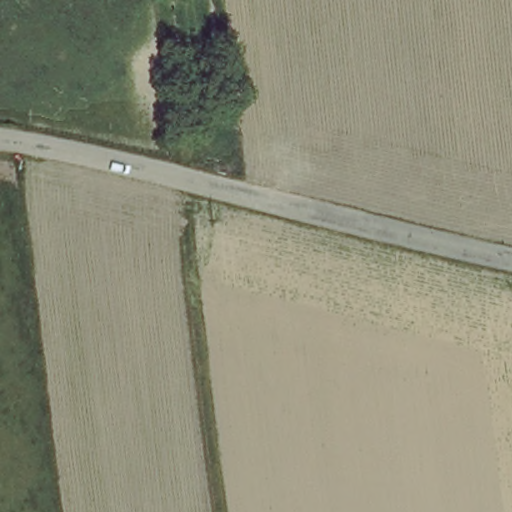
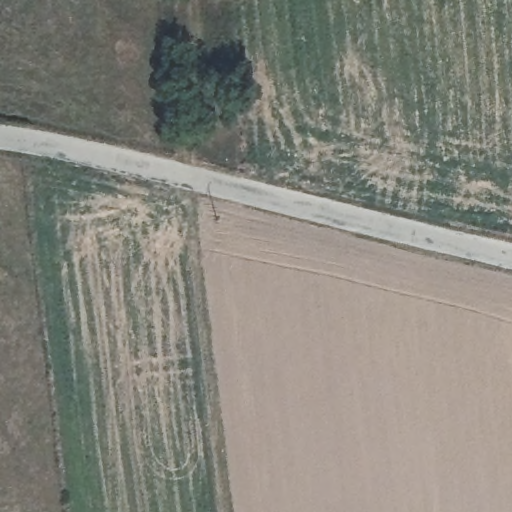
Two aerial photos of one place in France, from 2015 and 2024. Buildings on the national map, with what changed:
[]

